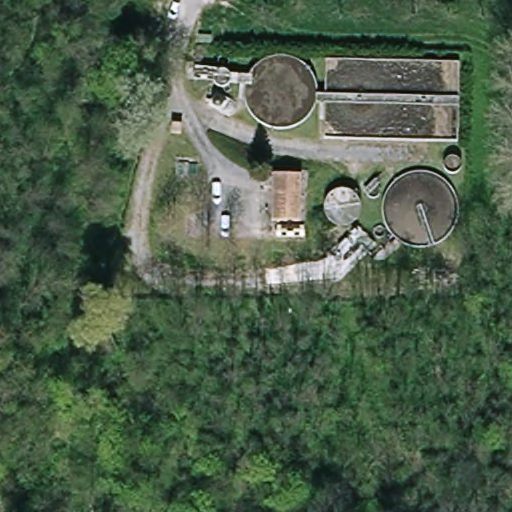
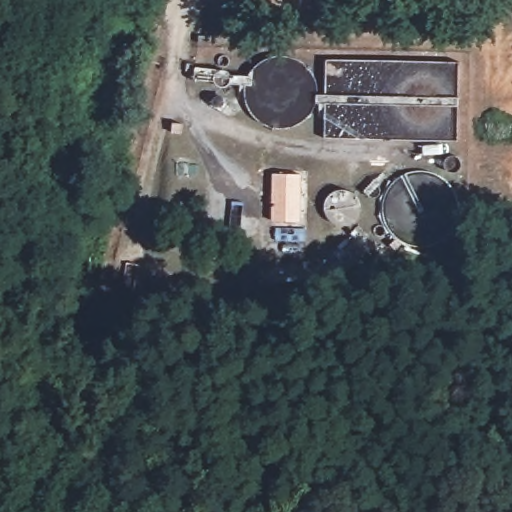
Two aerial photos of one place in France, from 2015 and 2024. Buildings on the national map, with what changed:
unchanged [(302,221),(277,220),(278,175),(302,175),(302,221)]

